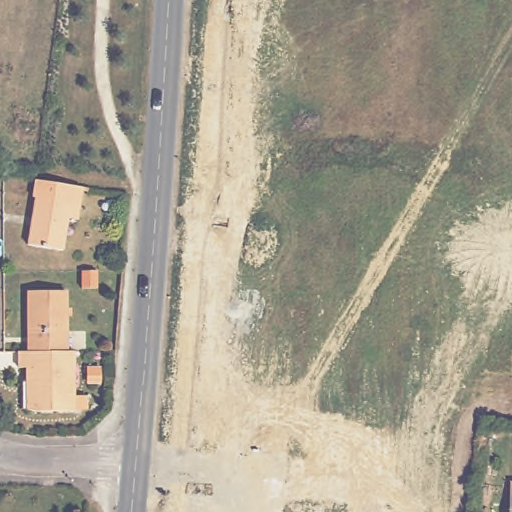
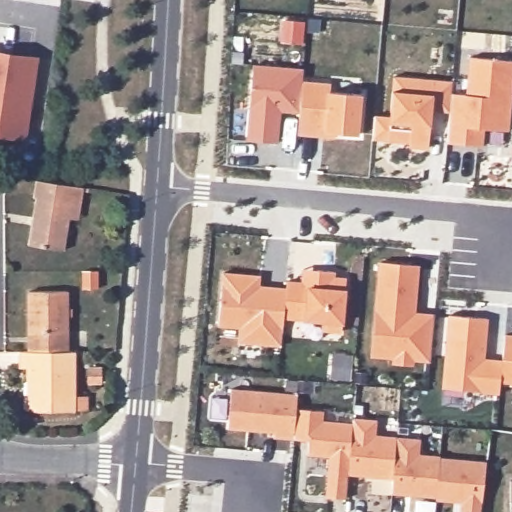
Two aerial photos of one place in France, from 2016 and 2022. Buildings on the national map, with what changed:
unchanged [(38,56),(26,140),(0,137),(0,51),(38,56)]
new [(449,93),(464,94),(468,57),(512,61),(512,67),(506,131),(482,129),(480,146),(445,143),(448,111),(449,93)]
new [(251,64),(301,68),(300,81),(297,112),(278,111),(275,142),(244,140),(251,64)]
new [(388,116),(392,75),(450,80),(449,93),(448,111),(430,110),(426,148),(407,146),(408,142),(386,140),(370,138),(372,114),(388,116)]
new [(312,136),(295,134),(297,112),(300,81),(328,84),(327,91),(359,94),(355,135),(332,133),(332,138),(312,136)]
unchanged [(33,199),(30,195),(33,179),(80,186),(80,187),(77,204),(75,219),(65,217),(59,252),(25,247),(33,199)]
new [(378,260),(419,263),(416,310),(434,311),(430,361),(413,359),(413,364),(390,362),(390,358),(370,357),(378,260)]
new [(237,341),(239,326),(218,324),(222,270),(260,273),(260,284),(286,286),(280,346),(237,341)]
unchanged [(80,291),(79,273),(94,273),(95,290),(80,291)]
unchanged [(46,351),(42,351),(27,351),(28,293),(65,293),(65,351),(46,351)]
new [(487,317),(485,356),(501,357),(503,333),(512,333),(512,380),(500,379),(499,393),(441,386),(446,313),(487,317)]
unchanged [(86,411),(73,411),(73,412),(34,412),(21,407),(21,381),(24,381),(25,368),(17,368),(17,351),(27,351),(42,351),(46,351),(65,351),(74,351),(73,396),(86,396),(86,411)]
unchanged [(296,394),(290,439),(273,438),(274,433),(227,430),(231,389),(296,394)]
new [(295,406),(324,408),(323,418),(350,420),(351,415),(378,417),(376,434),(398,436),(393,477),(346,473),(345,497),(324,496),(328,455),(306,453),(308,440),(290,439),(295,406)]
unchanged [(420,438),(419,454),(485,461),(480,512),(459,512),(460,502),(436,501),(437,498),(391,495),(398,436),(420,438)]
unchanged [(512,481),(512,512),(507,512),(507,481),(512,481)]

